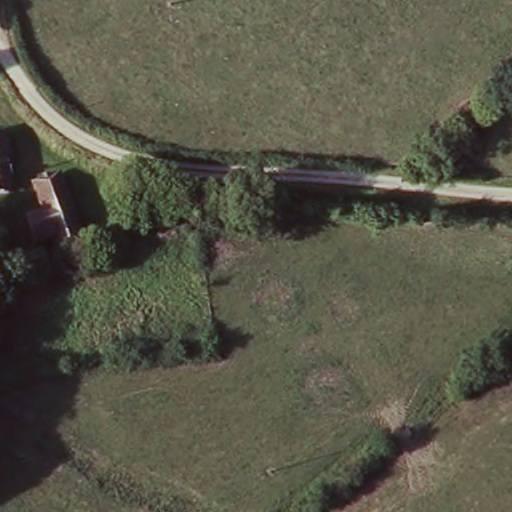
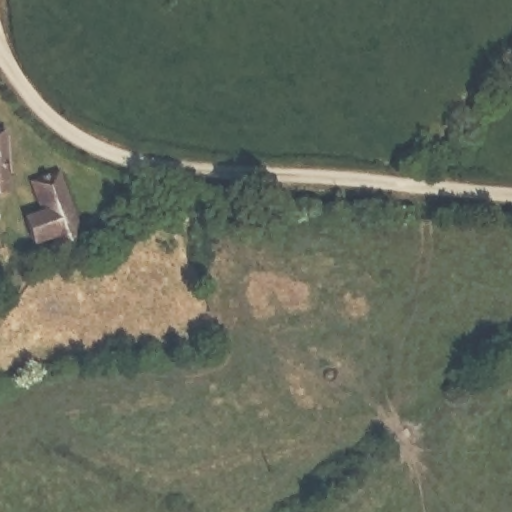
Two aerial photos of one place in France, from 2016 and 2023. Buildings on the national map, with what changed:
unchanged [(0,195),(0,132),(4,133),(5,195),(0,195)]
unchanged [(83,243),(53,249),(51,237),(34,240),(28,217),(43,212),(36,182),(66,175),(83,243)]

